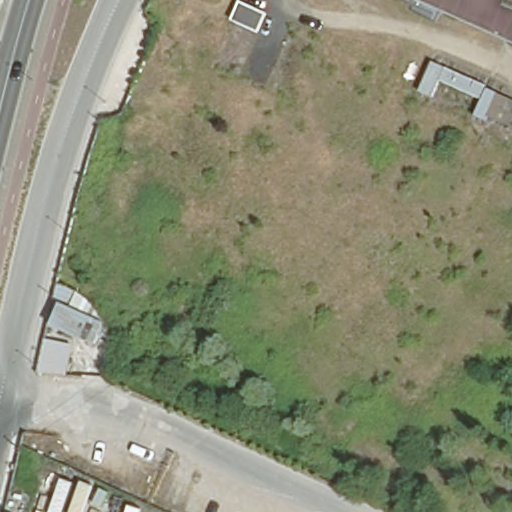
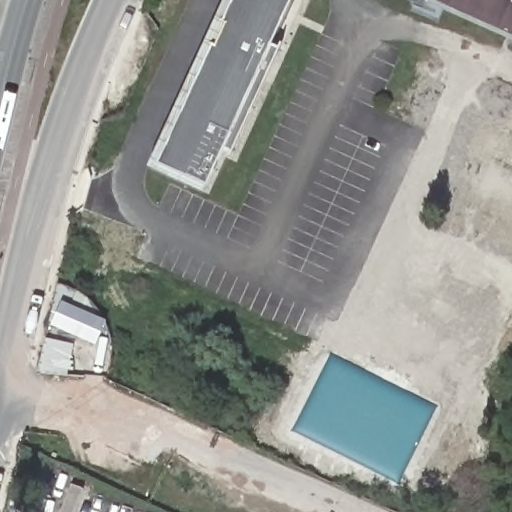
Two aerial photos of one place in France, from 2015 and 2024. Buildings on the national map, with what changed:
new [(146,169),(225,0),(294,0),(203,196),(146,169)]
unchanged [(408,0),(512,0),(512,46),(408,0)]
demolished [(263,13),(256,30),(229,18),(237,1),(263,13)]
unchanged [(489,85),(487,91),(512,102),(512,132),(506,130),(509,125),(485,115),(483,121),(472,116),(481,97),(441,79),(433,98),(417,90),(430,60),(489,85)]
unchanged [(56,279),(76,286),(72,297),(52,290),(56,279)]
unchanged [(56,299),(103,319),(93,341),(46,322),(56,299)]

